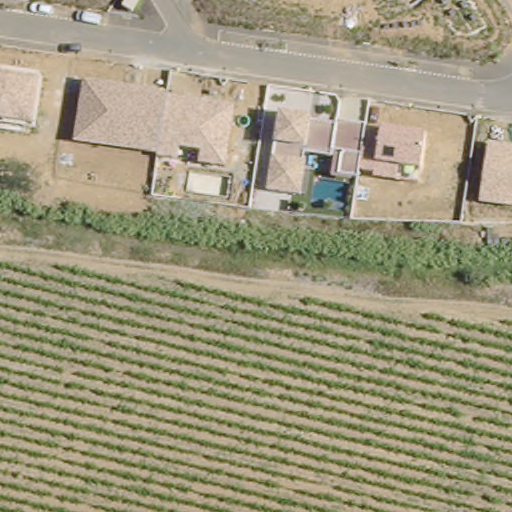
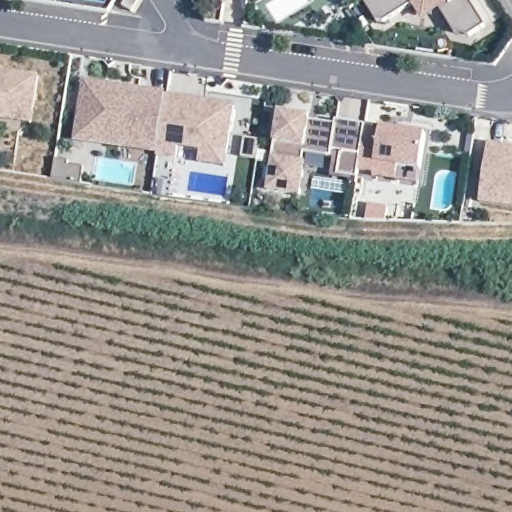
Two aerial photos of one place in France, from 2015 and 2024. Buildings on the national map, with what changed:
new [(468,38),(457,34),(442,12),(422,22),(412,6),(385,23),(377,21),(365,2),(368,0),(469,0),(486,27),(468,38)]
unchanged [(40,72),(43,79),(35,128),(0,124),(0,71),(0,67),(40,72)]
unchanged [(83,79),(235,104),(225,167),(198,164),(200,151),(178,148),(177,161),(157,157),(157,153),(75,141),(83,79)]
unchanged [(275,143),(279,111),(311,116),(310,120),(335,124),(335,120),(382,128),(425,135),(420,169),(396,166),(394,180),(374,176),(375,173),(358,172),(357,180),(332,175),(333,158),(307,153),(300,195),(267,190),(275,143)]
unchanged [(489,143),(512,146),(512,207),(480,202),(489,143)]

